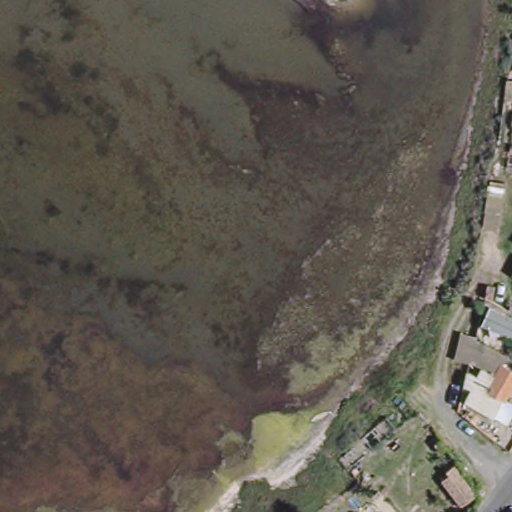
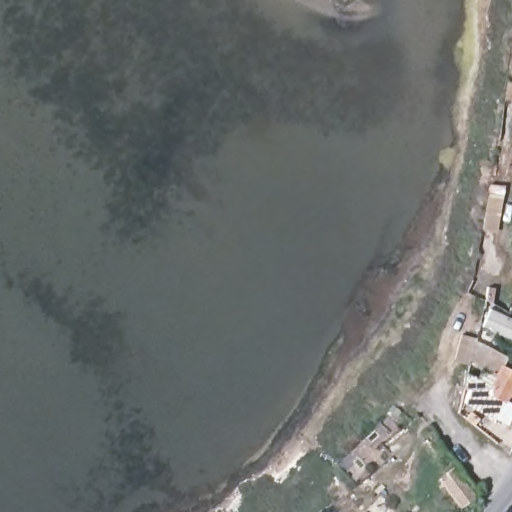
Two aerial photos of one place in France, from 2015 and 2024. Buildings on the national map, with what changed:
unchanged [(480,229),(487,194),(502,195),(497,231),(480,229)]
unchanged [(495,417),(464,402),(470,390),(465,385),(469,365),(454,360),(460,333),(476,336),(486,299),(488,286),(495,287),(494,302),(509,309),(510,308),(512,309),(512,322),(507,320),(505,322),(495,316),(485,342),(507,356),(503,364),(512,369),(512,397),(509,395),(507,399),(505,399),(512,402),(512,416),(507,424),(495,417)]
unchanged [(471,410),(479,417),(474,424),(465,417),(471,410)]
unchanged [(440,440),(445,448),(440,452),(435,445),(440,440)]
unchanged [(451,499),(435,477),(451,464),(452,464),(468,486),(451,499)]
unchanged [(316,502),(323,508),(319,512),(305,512),(316,502)]

